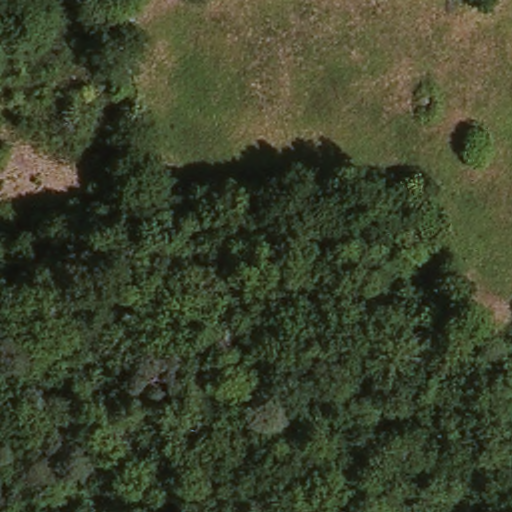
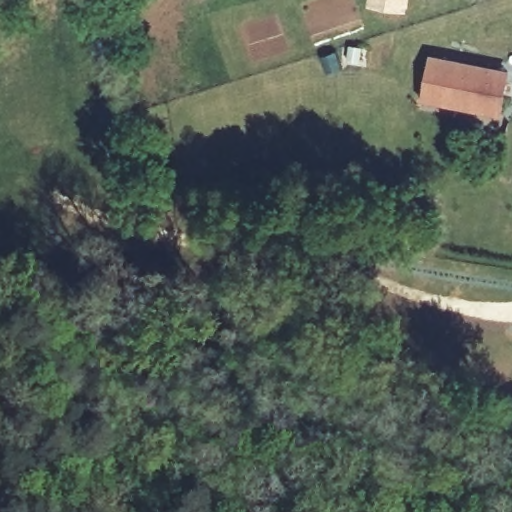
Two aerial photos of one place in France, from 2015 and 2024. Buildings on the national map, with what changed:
new [(465,105),(426,98),(435,56),(511,70),(510,82),(511,82),(509,92),(507,92),(505,107),(503,112),(465,105)]

